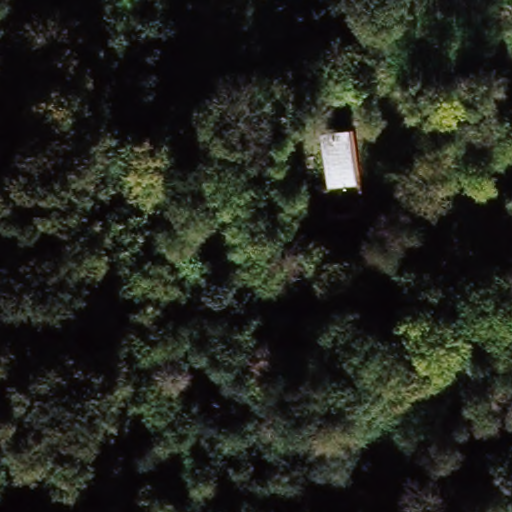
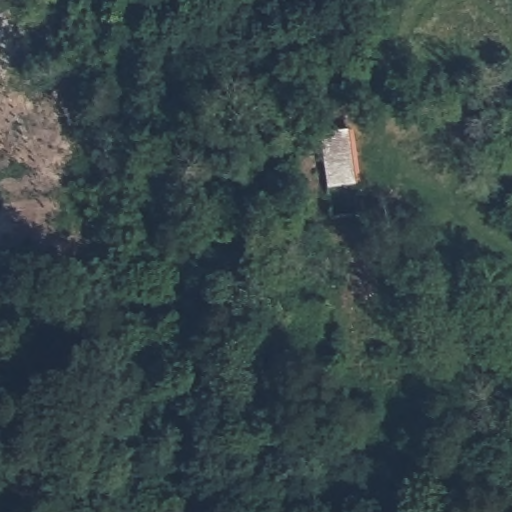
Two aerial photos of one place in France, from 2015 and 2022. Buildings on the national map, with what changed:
unchanged [(349,124),(354,181),(327,186),(322,127),(349,124)]

